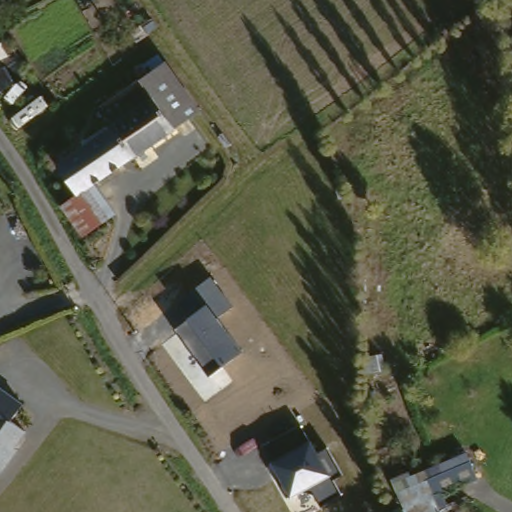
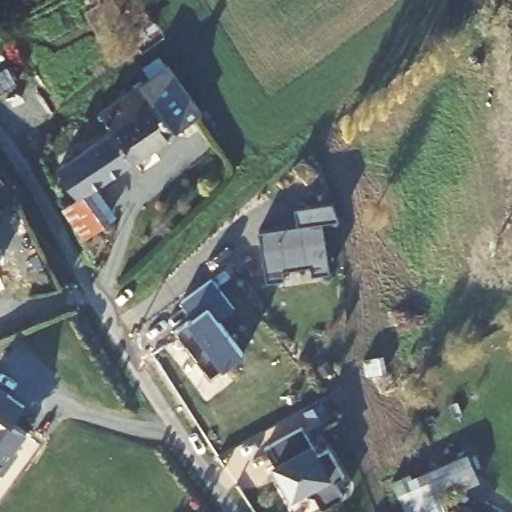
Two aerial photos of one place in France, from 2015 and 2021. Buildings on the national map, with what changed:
unchanged [(27,7),(24,0),(42,0),(27,7)]
unchanged [(201,112),(148,147),(128,117),(133,114),(120,93),(151,71),(165,60),(201,112)]
unchanged [(16,90),(3,96),(0,91),(0,76),(7,72),(16,90)]
unchanged [(133,114),(128,117),(148,147),(134,157),(114,128),(103,112),(100,108),(120,93),(133,114)]
unchanged [(114,128),(134,157),(79,196),(59,166),(114,128)]
unchanged [(97,226),(82,237),(62,209),(78,198),(97,226)]
new [(337,215),(319,217),(327,270),(312,272),(310,262),(282,266),(284,278),(267,281),(258,228),(297,221),(294,205),(330,199),(337,215)]
unchanged [(232,306),(218,317),(242,352),(209,375),(176,328),(209,302),(197,286),(212,275),(232,306)]
unchanged [(21,425),(32,434),(7,476),(0,474),(0,391),(33,408),(21,425)]
unchanged [(343,474),(334,479),(342,494),(322,505),(315,494),(305,492),(290,498),(271,462),(282,456),(272,442),(302,426),(312,439),(319,452),(328,447),(343,474)]
unchanged [(476,453),(485,473),(412,507),(403,487),(476,453)]

